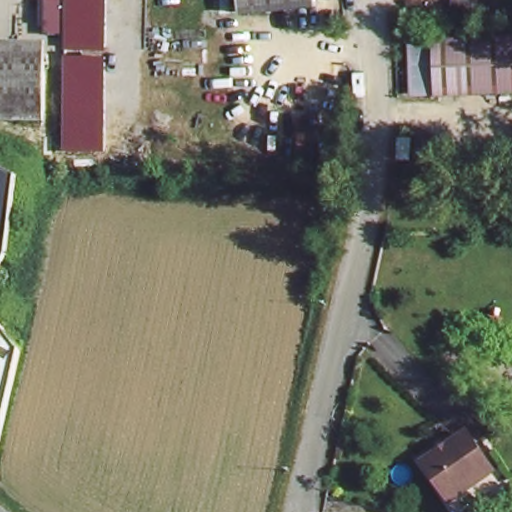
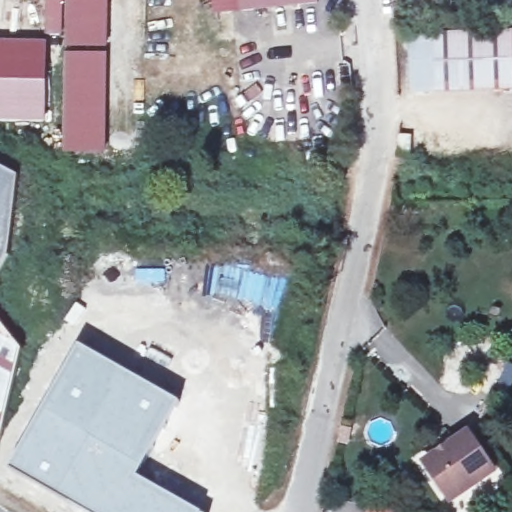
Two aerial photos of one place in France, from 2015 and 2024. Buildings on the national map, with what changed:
unchanged [(64,38),(65,0),(105,0),(104,39),(64,38)]
unchanged [(243,0),(307,0),(244,6),(243,0)]
unchanged [(512,83),(423,90),(418,39),(512,29),(512,83)]
unchanged [(47,49),(45,103),(0,102),(0,49),(47,49)]
unchanged [(67,54),(107,55),(105,138),(65,137),(67,54)]
unchanged [(406,145),(407,123),(421,124),(420,146),(406,145)]
unchanged [(2,159),(17,167),(29,174),(19,219),(13,254),(0,275),(0,159),(2,159)]
unchanged [(13,349),(0,397),(0,315),(13,349)]
new [(80,344),(181,401),(139,476),(202,512),(85,512),(8,469),(80,344)]
unchanged [(472,434),(499,476),(460,501),(434,459),(472,434)]

